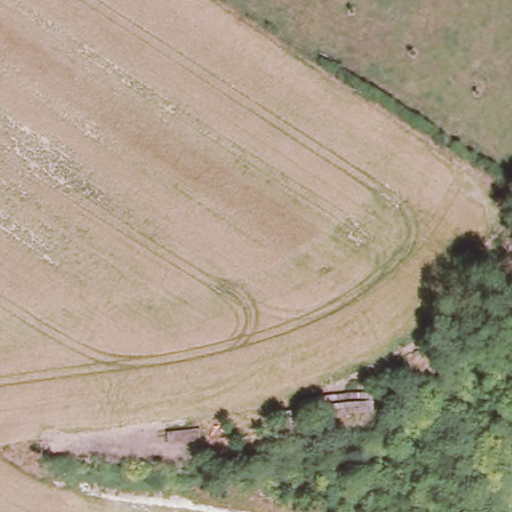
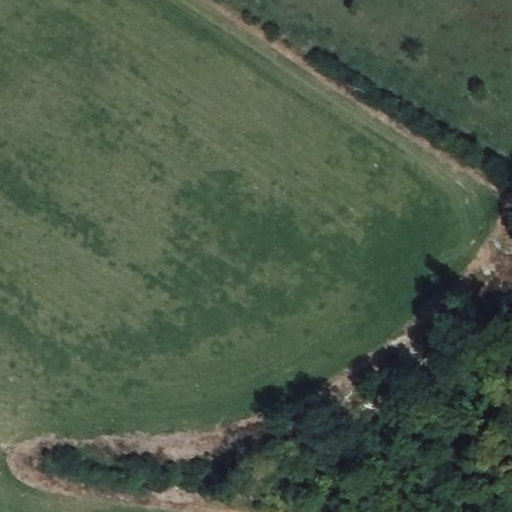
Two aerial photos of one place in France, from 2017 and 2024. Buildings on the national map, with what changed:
[]

